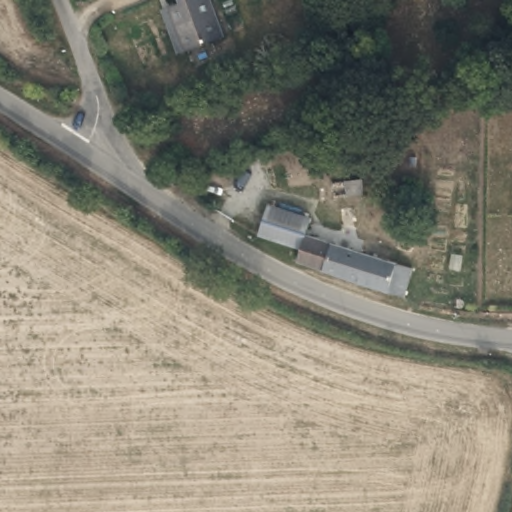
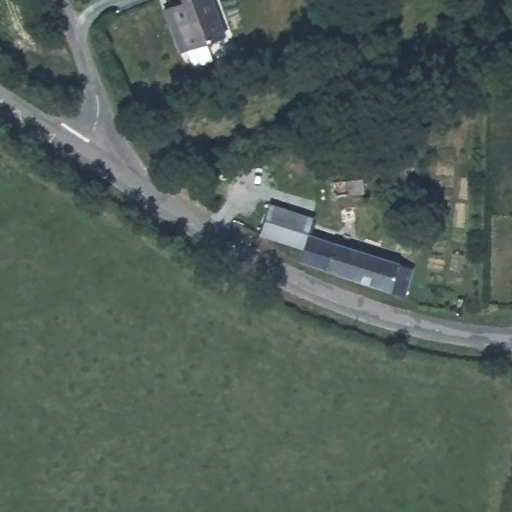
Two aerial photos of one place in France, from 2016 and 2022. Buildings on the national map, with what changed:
unchanged [(169,16),(181,10),(177,0),(205,0),(220,41),(182,55),(169,16)]
unchanged [(331,209),(328,193),(351,189),(355,204),(331,209)]
unchanged [(298,261),(302,249),(258,235),(268,204),(311,217),(307,233),(410,264),(402,295),(298,261)]

